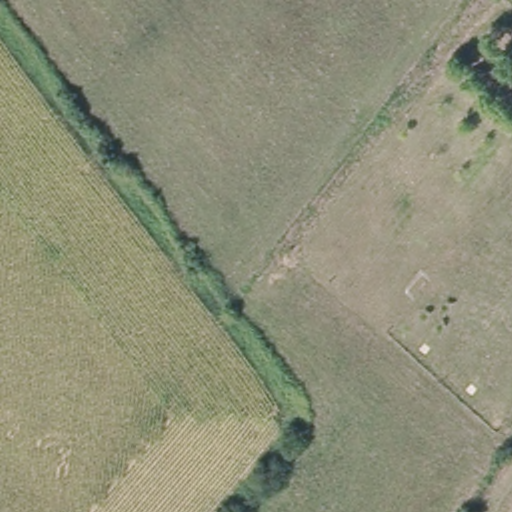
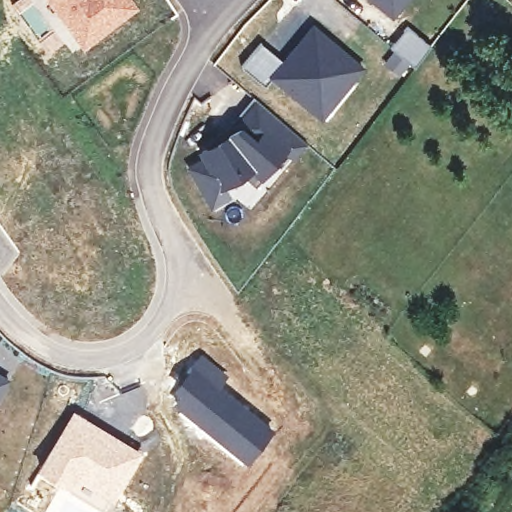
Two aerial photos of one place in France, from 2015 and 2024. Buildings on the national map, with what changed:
new [(58,0),(135,0),(139,5),(103,32),(89,42),(72,20),(58,0)]
new [(378,0),(404,0),(393,12),(378,0)]
new [(433,42),(417,64),(392,43),(410,22),(433,42)]
new [(305,101),(275,75),(266,84),(242,65),(262,41),(285,60),(315,25),(363,66),(351,80),(322,115),(305,101)]
new [(241,121),(236,116),(253,97),(306,144),(292,161),(283,154),(255,186),(242,173),(251,167),(226,132),(241,121)]
new [(226,132),(251,167),(242,173),(225,185),(200,155),(197,152),(226,132)]
new [(200,155),(225,185),(232,198),(211,209),(184,167),(200,155)]
new [(200,353),(228,375),(220,385),(273,430),(246,463),(171,405),(175,399),(167,393),(200,353)]
new [(0,396),(0,373),(10,380),(0,396)]
new [(72,407),(142,450),(104,510),(36,466),(72,407)]

